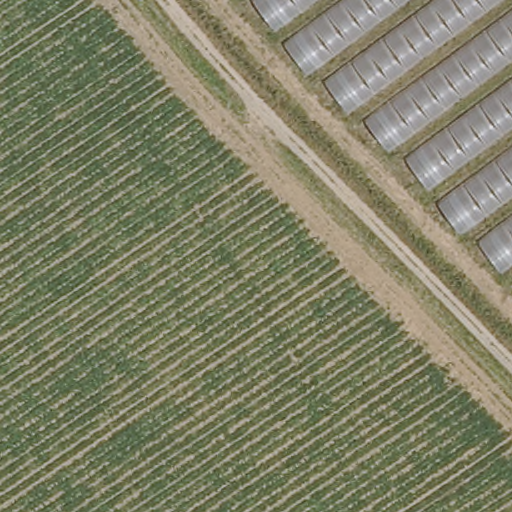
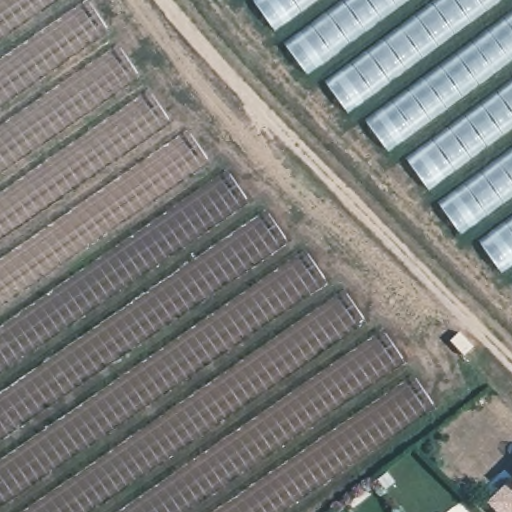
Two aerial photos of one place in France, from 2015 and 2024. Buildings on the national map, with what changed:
new [(181,138),(190,132),(385,331),(437,406),(283,512),(0,512),(0,0),(87,0),(181,138)]
unchanged [(242,0),(512,0),(512,292),(319,89),(242,0)]
new [(512,512),(496,512),(487,503),(512,478),(512,512)]

